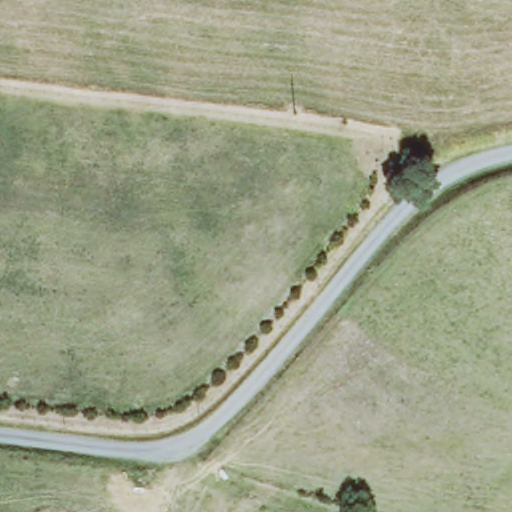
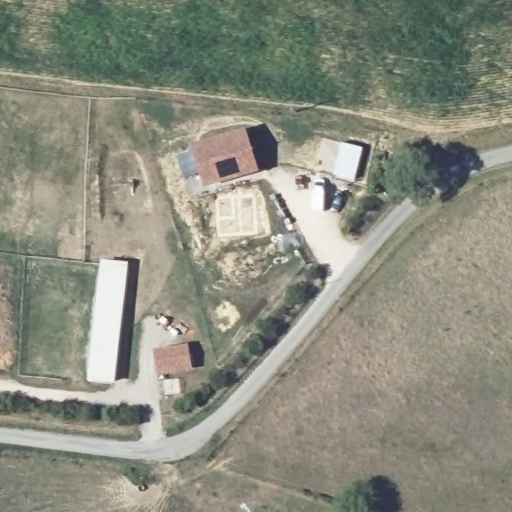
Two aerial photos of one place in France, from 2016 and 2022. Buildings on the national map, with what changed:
new [(193,148),(247,129),(260,171),(205,188),(193,148)]
new [(128,263),(115,384),(88,381),(102,259),(128,263)]
new [(158,374),(154,350),(190,343),(194,368),(158,374)]

